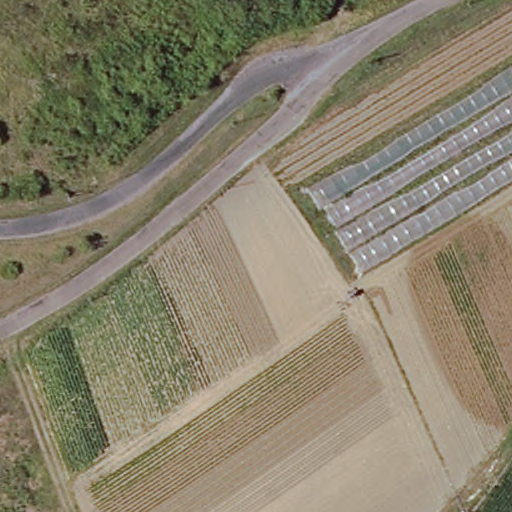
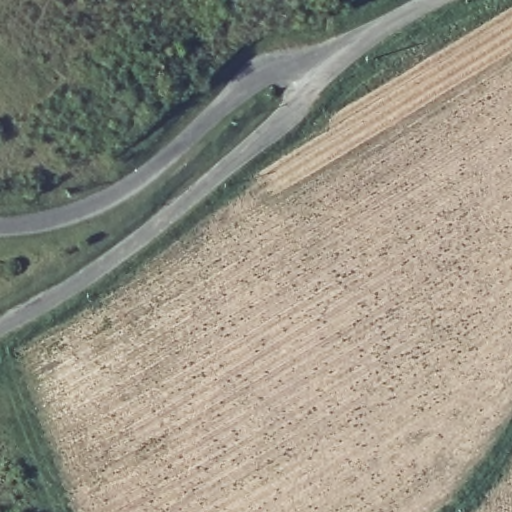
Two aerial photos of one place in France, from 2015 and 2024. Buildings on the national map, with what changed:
demolished [(299,185),(512,19),(512,151),(360,272),(299,185)]

